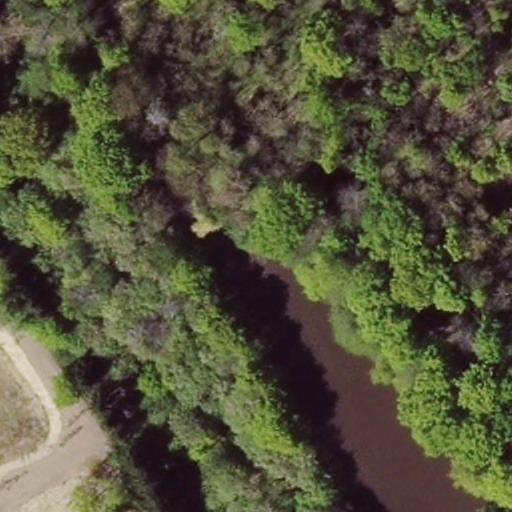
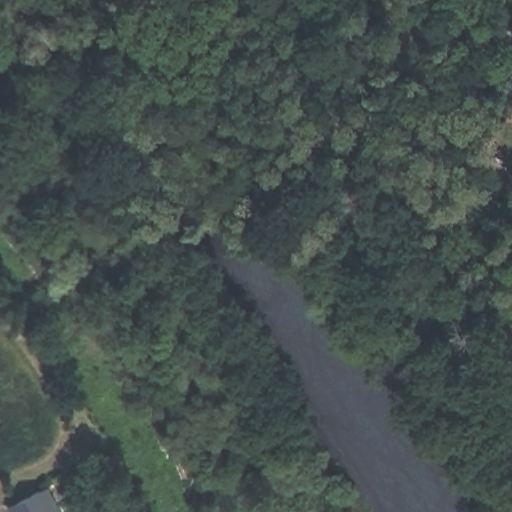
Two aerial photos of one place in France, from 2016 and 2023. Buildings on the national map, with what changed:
unchanged [(498,125),(512,111),(512,142),(498,125)]
new [(9,506),(50,486),(64,512),(12,512),(9,506)]

